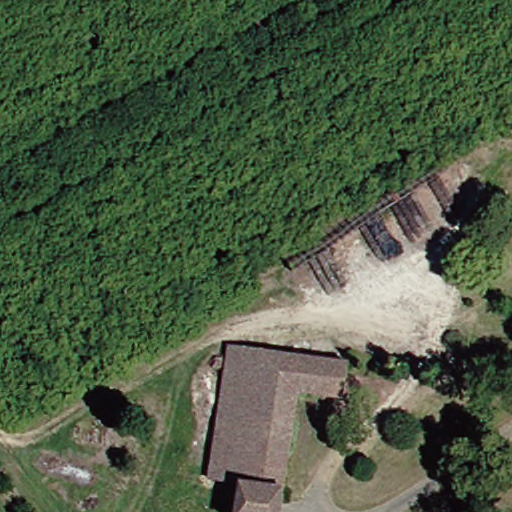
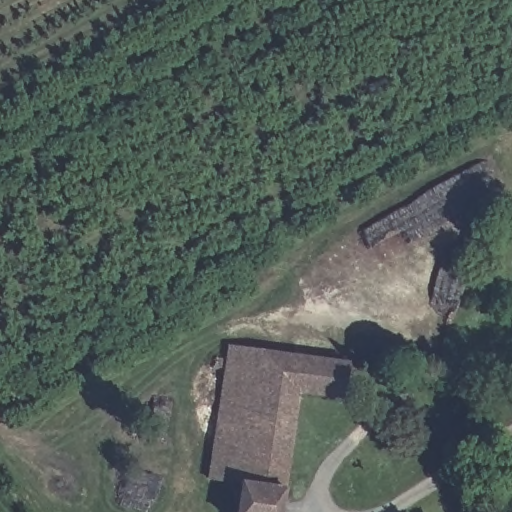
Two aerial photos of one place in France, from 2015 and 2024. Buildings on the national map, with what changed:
unchanged [(343,408),(296,404),(282,512),(232,512),(234,482),(214,477),(230,345),(349,361),(343,408)]

